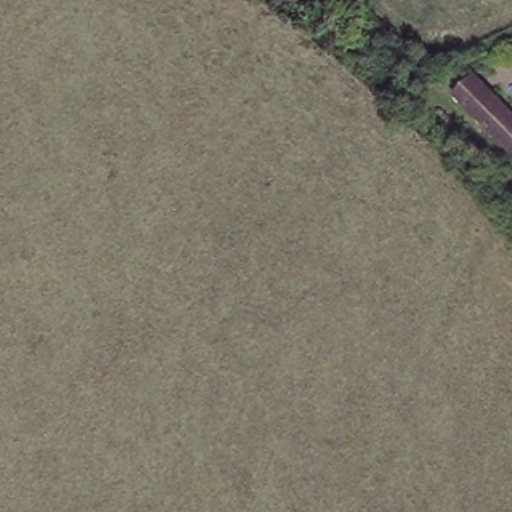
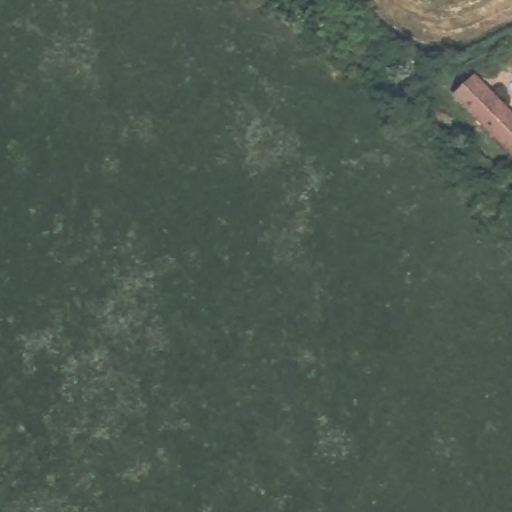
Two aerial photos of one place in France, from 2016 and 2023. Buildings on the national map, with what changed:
unchanged [(512,117),(512,156),(454,102),(473,81),(512,117)]

